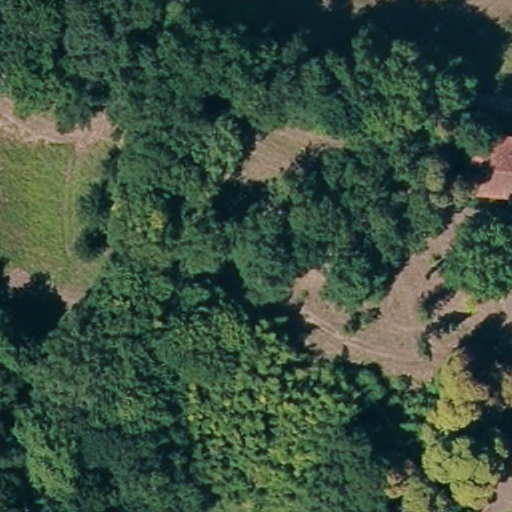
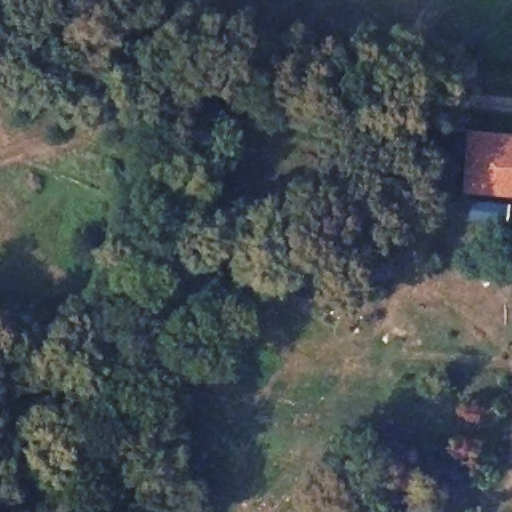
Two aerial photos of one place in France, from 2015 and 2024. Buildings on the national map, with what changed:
unchanged [(512,122),(512,140),(481,138),(482,130),(482,119),(512,122)]
unchanged [(453,145),(438,145),(438,134),(453,134),(453,145)]
unchanged [(462,193),(465,136),(481,138),(512,140),(512,197),(462,193)]

